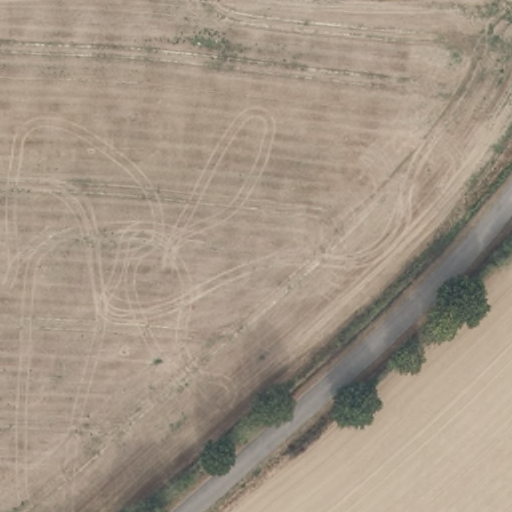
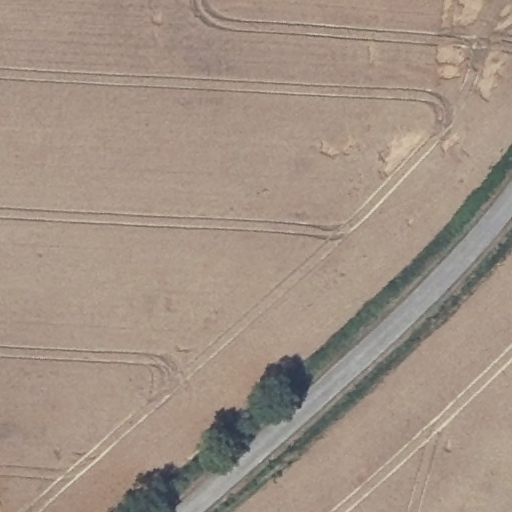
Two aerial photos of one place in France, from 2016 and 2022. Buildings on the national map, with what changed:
[]

